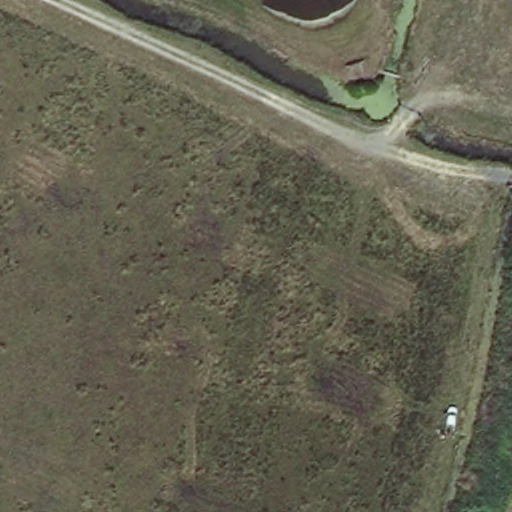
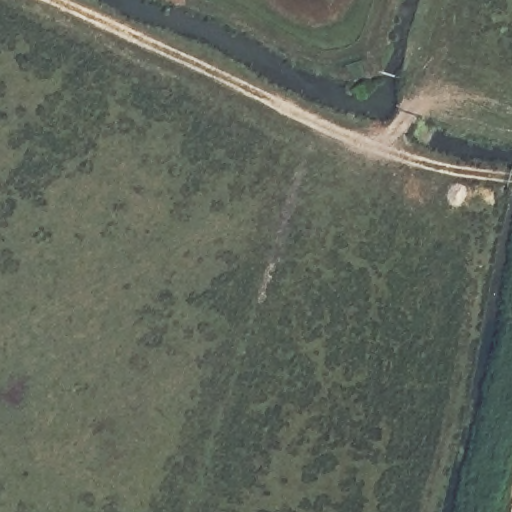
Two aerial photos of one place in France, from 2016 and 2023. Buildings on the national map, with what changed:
unchanged [(361,63),(367,75),(355,82),(349,70),(361,63)]

